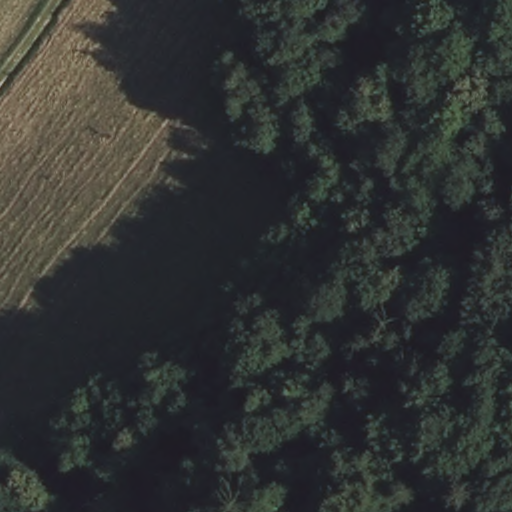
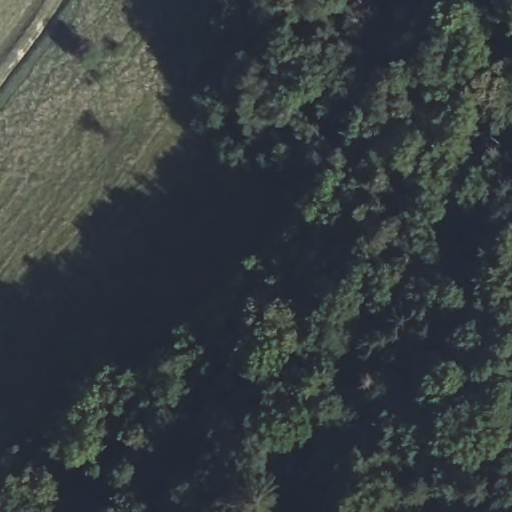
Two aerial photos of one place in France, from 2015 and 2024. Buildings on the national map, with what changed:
[]

